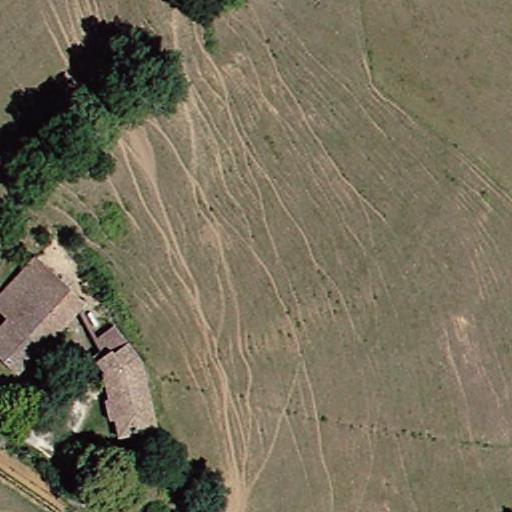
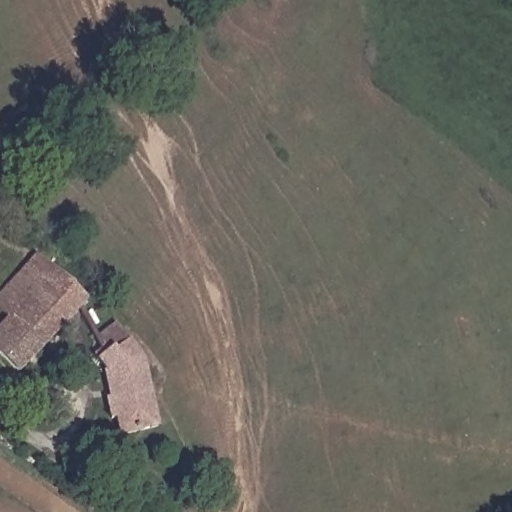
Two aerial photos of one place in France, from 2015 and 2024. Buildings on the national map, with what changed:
unchanged [(0,351),(0,332),(13,320),(0,303),(0,301),(56,247),(98,292),(21,373),(0,351)]
unchanged [(105,367),(98,357),(125,331),(133,340),(153,365),(160,435),(122,438),(120,425),(111,425),(105,403),(118,400),(113,380),(105,367)]

